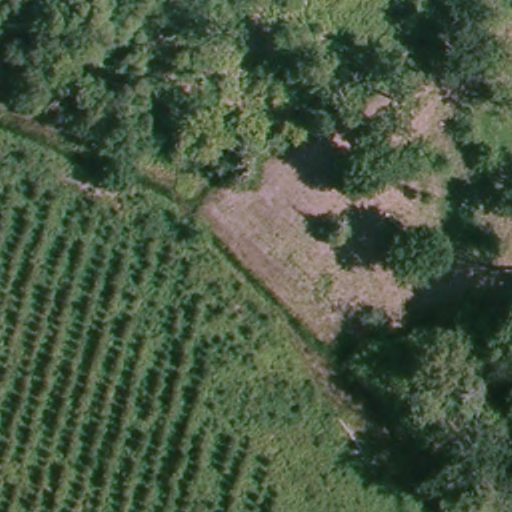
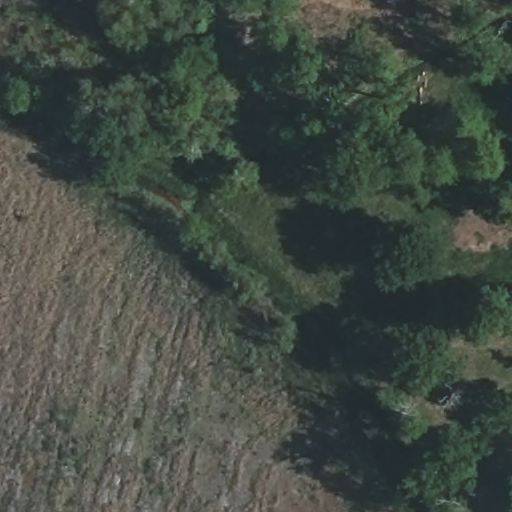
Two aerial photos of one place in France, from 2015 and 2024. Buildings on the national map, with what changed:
[]

